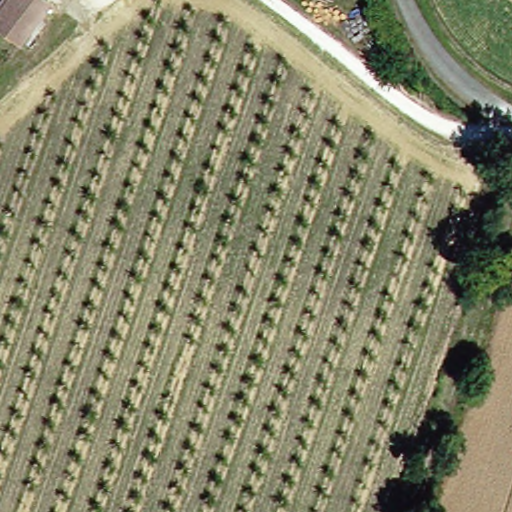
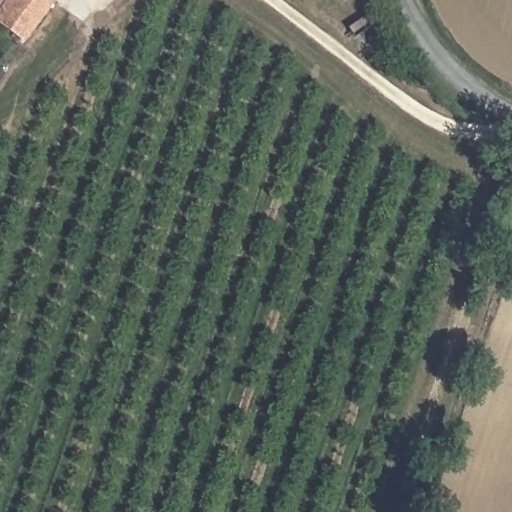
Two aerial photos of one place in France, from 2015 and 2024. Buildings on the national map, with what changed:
unchanged [(15,0),(52,0),(55,2),(23,40),(0,23),(0,22),(15,0)]

